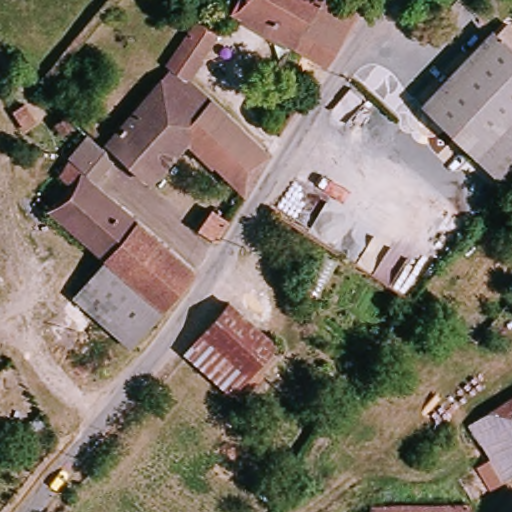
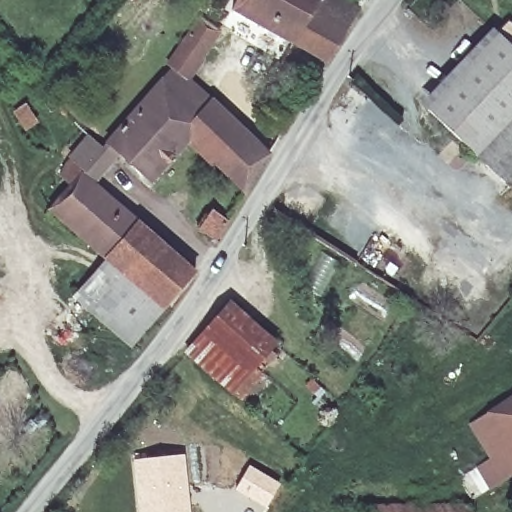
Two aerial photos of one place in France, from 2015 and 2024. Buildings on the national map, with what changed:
unchanged [(240,15),(249,0),(344,0),(370,15),(335,65),(240,15)]
unchanged [(453,15),(445,7),(452,0),(457,0),(463,6),(453,15)]
unchanged [(171,67),(207,21),(226,36),(193,84),(175,72),(171,67)]
unchanged [(511,185),(436,105),(509,36),(512,40),(512,183),(511,185)]
unchanged [(113,148),(175,72),(193,84),(216,103),(184,140),(193,148),(159,187),(131,165),(110,190),(73,163),(81,152),(98,135),(105,141),(113,148)]
unchanged [(223,167),(221,171),(193,148),(184,140),(216,103),(272,157),(251,194),(223,167)]
unchanged [(114,264),(55,215),(76,191),(61,176),(70,166),(200,275),(173,314),(114,264)]
unchanged [(199,230),(213,214),(226,225),(216,244),(199,230)]
unchanged [(114,264),(173,314),(159,328),(105,273),(114,264)]
unchanged [(159,328),(141,351),(80,299),(105,273),(159,328)]
unchanged [(235,307),(280,347),(255,378),(241,396),(193,357),(208,340),(235,307)]
unchanged [(498,486),(485,464),(498,456),(477,420),(512,399),(512,477),(498,486)]
new [(189,512),(136,512),(131,458),(184,454),(189,512)]
new [(249,464),(281,483),(266,508),(234,488),(249,464)]
unchanged [(479,510),(479,512),(380,512),(381,510),(479,510)]

